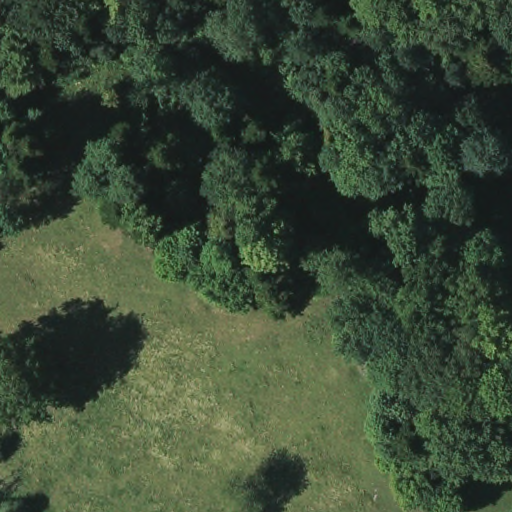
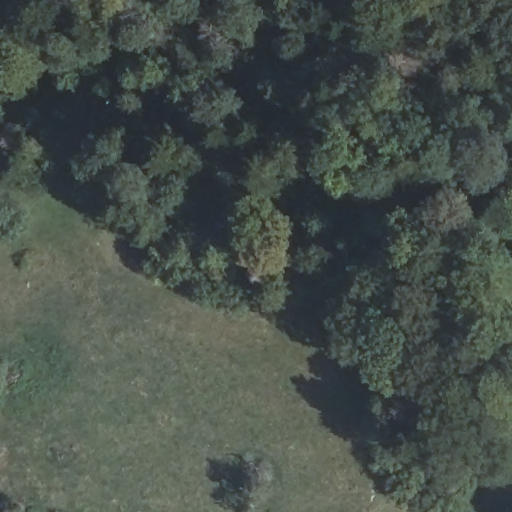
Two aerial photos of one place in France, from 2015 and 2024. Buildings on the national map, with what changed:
[]

